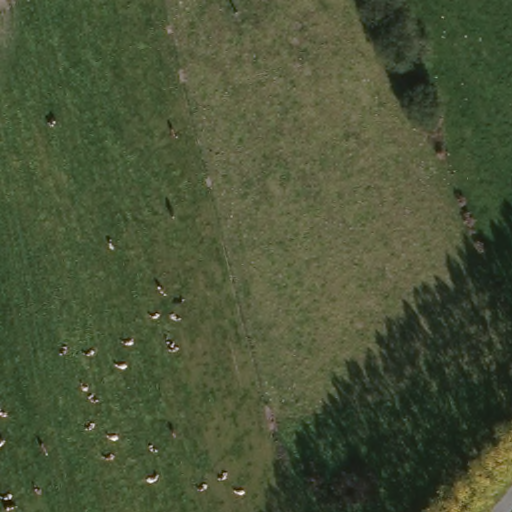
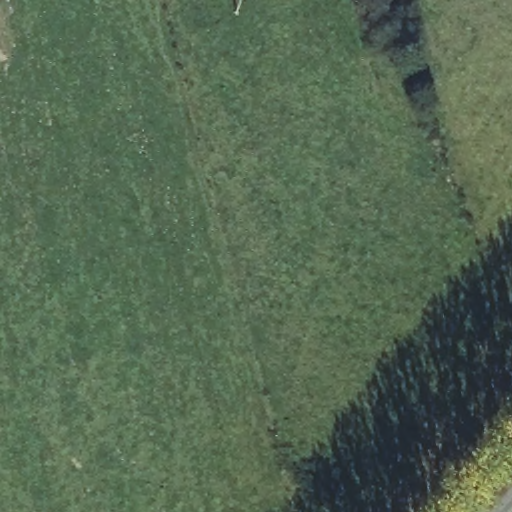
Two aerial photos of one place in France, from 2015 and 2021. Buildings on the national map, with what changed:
[]

